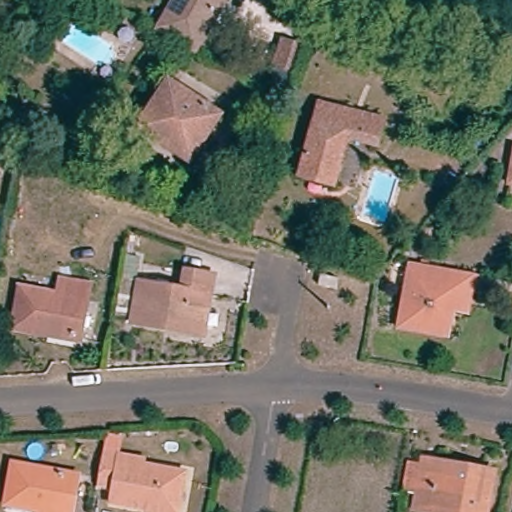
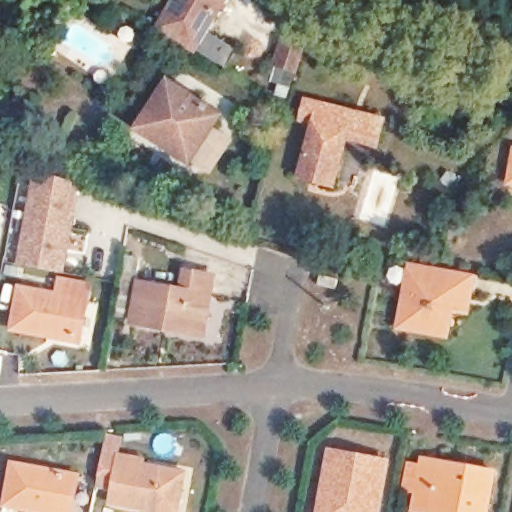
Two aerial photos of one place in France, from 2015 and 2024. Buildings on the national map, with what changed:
unchanged [(225,0),(195,51),(159,31),(178,0),(225,0)]
unchanged [(312,66),(285,55),(294,31),(320,40),(312,66)]
unchanged [(0,36),(9,42),(0,56),(0,36)]
unchanged [(169,84),(217,118),(188,165),(138,131),(169,84)]
unchanged [(390,125),(383,151),(365,145),(367,136),(352,133),(339,180),(308,170),(328,105),(390,125)]
unchanged [(508,175),(512,158),(512,176),(508,175)]
new [(16,264),(34,178),(81,186),(65,274),(16,264)]
unchanged [(399,333),(407,288),(410,270),(422,272),(452,277),(476,280),(472,309),(456,308),(451,340),(399,333)]
unchanged [(158,333),(130,327),(137,286),(179,294),(183,275),(210,280),(199,331),(198,339),(158,333)]
unchanged [(46,344),(16,339),(24,293),(58,299),(60,283),(93,289),(90,304),(83,351),(46,344)]
new [(326,447),(390,458),(380,512),(313,512),(326,447)]
unchanged [(116,498),(96,494),(103,459),(122,462),(148,467),(147,474),(190,482),(185,512),(114,512),(116,498)]
unchanged [(417,492),(422,459),(496,474),(489,512),(413,512),(417,492)]
unchanged [(5,508),(14,466),(80,479),(72,512),(24,512),(5,508)]

